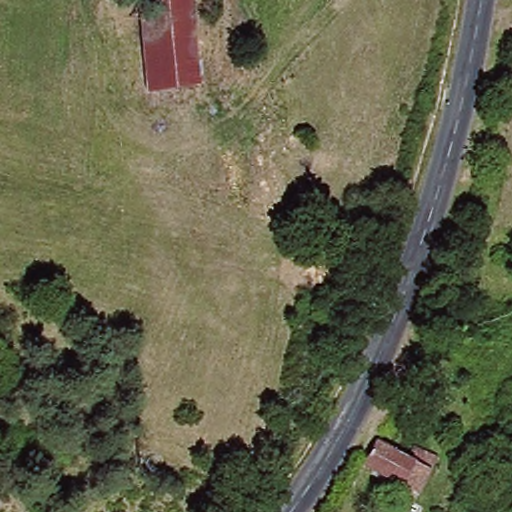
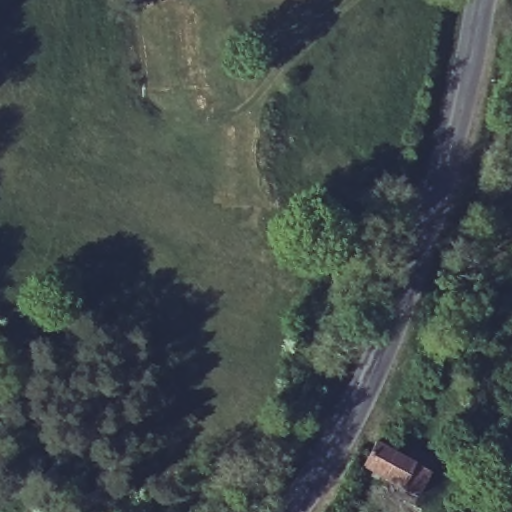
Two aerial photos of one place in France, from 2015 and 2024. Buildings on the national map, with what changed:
demolished [(135,0),(191,0),(206,85),(152,94),(135,0)]
unchanged [(370,441),(429,472),(415,496),(357,465),(370,441)]

